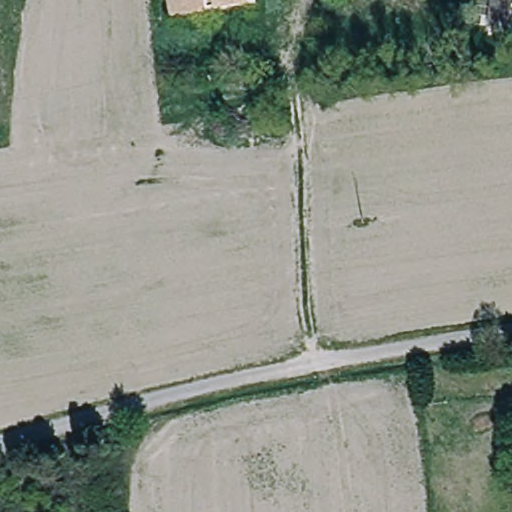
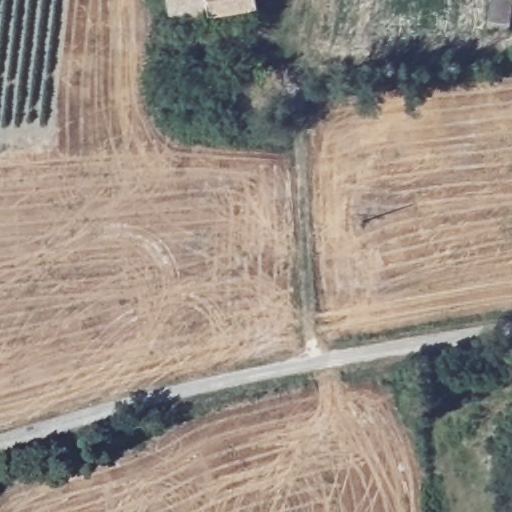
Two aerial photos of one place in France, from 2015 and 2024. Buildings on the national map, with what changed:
unchanged [(167,0),(255,0),(169,14),(167,0)]
unchanged [(481,0),(509,0),(506,28),(478,24),(481,0)]

